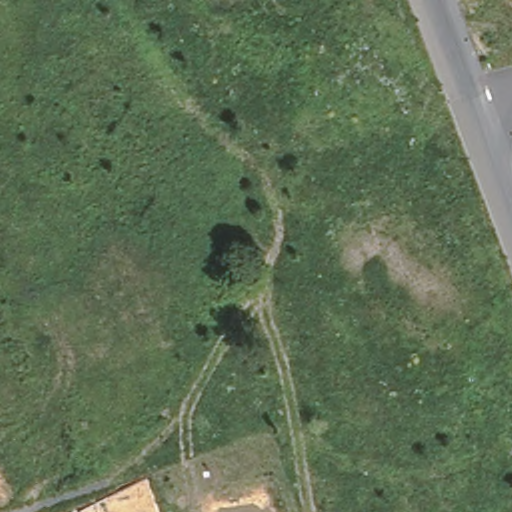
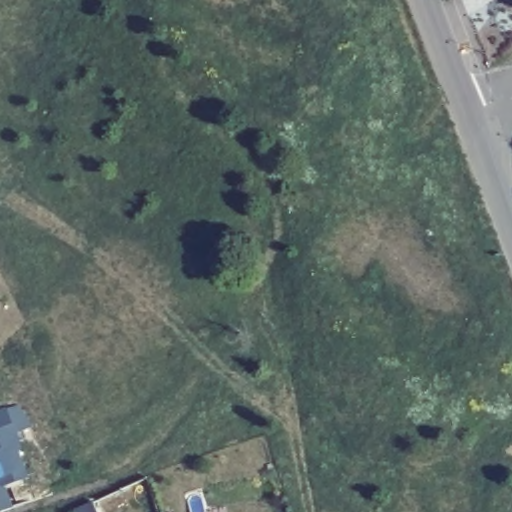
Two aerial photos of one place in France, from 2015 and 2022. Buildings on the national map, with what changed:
new [(24,449),(12,453),(19,472),(0,479),(0,411),(7,408),(24,449)]

